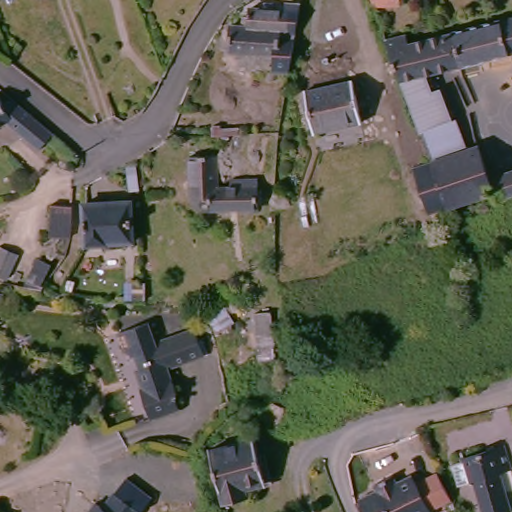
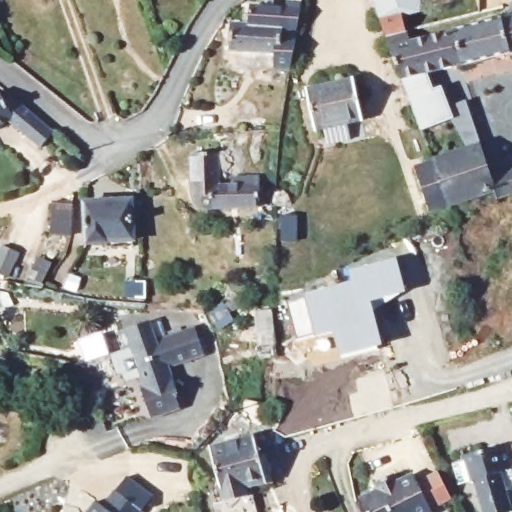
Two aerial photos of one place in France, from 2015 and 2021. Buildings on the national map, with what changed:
unchanged [(441,26),(413,32),(400,35),(392,37),(378,0),(431,0),(441,26)]
unchanged [(244,14),(249,14),(251,6),(293,9),(291,24),(298,24),(298,27),(291,67),(274,67),(276,51),(230,49),(232,22),(243,22),(244,14)]
unchanged [(504,201),(501,192),(454,207),(436,212),(421,166),(438,160),(423,120),(400,59),(392,37),(400,35),(413,32),(417,42),(512,18),(512,55),(433,74),(439,90),(448,87),(459,118),(466,117),(476,148),(484,145),(496,179),(512,174),(512,198),(504,201)]
unchanged [(367,120),(321,130),(313,89),(358,78),(367,120)]
unchanged [(8,103),(18,99),(36,114),(39,116),(61,134),(47,150),(15,122),(0,130),(0,95),(3,94),(8,103)]
demolished [(228,143),(214,144),(215,131),(223,131),(223,135),(243,133),(243,142),(228,143)]
unchanged [(219,156),(221,187),(232,187),(231,180),(259,179),(258,210),(204,212),(198,208),(194,203),(191,195),(191,157),(201,157),(219,156)]
unchanged [(139,237),(91,241),(89,200),(137,197),(139,237)]
unchanged [(74,209),(73,240),(53,239),(54,207),(74,209)]
new [(308,298),(355,286),(351,275),(395,263),(403,292),(373,314),(381,343),(375,344),(378,352),(343,362),(341,355),(336,332),(316,337),(297,342),(286,301),(308,298)]
unchanged [(276,366),(259,367),(256,320),(273,318),(276,366)]
unchanged [(208,362),(171,371),(176,396),(173,397),(176,412),(148,417),(141,387),(146,386),(141,357),(129,350),(124,330),(156,322),(161,342),(203,333),(208,362)]
unchanged [(269,480),(253,487),(257,501),(231,509),(206,453),(252,438),(269,480)]
unchanged [(505,471),(512,512),(481,512),(469,451),(509,443),(512,459),(512,469),(505,471)]
unchanged [(431,508),(434,512),(406,512),(386,474),(389,472),(396,482),(411,473),(419,482),(441,472),(454,496),(431,508)]
unchanged [(365,512),(359,501),(377,491),(371,482),(386,474),(406,512),(365,512)]
unchanged [(85,512),(101,498),(118,512),(85,512)]

